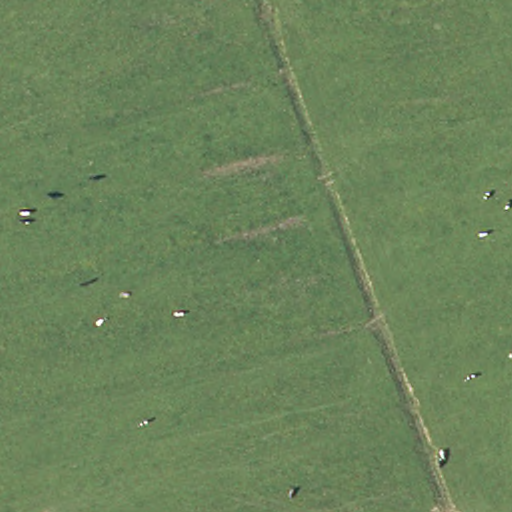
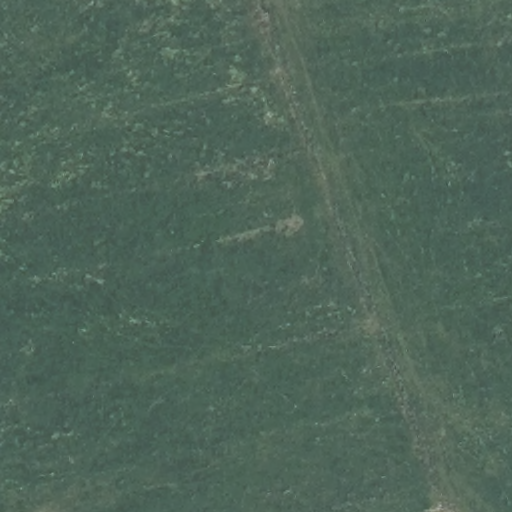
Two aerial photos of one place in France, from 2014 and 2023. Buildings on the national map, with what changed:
[]

